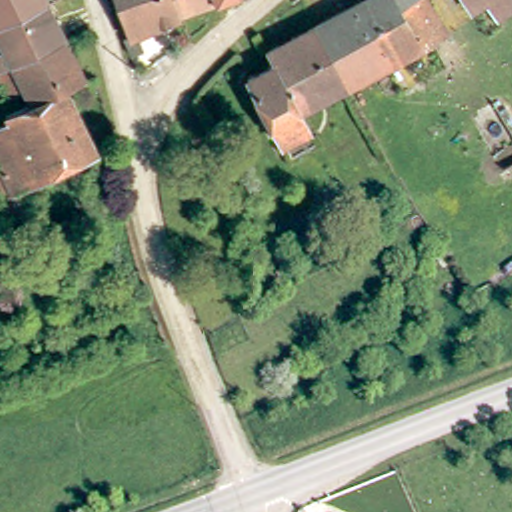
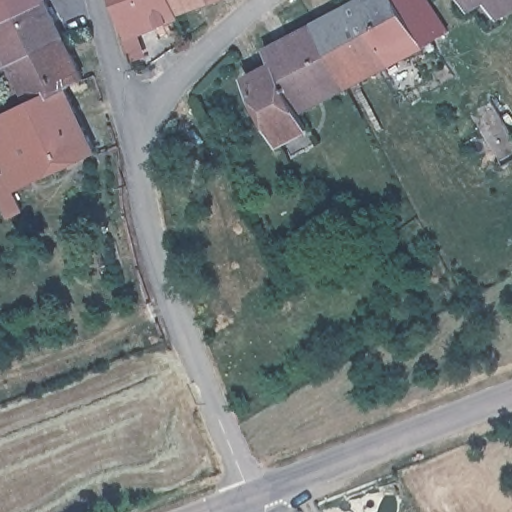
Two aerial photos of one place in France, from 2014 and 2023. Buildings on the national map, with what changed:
unchanged [(54,1),(0,28),(0,0),(53,0),(54,1)]
unchanged [(157,48),(143,55),(136,37),(140,35),(126,0),(180,0),(186,13),(150,31),(157,48)]
unchanged [(186,13),(180,0),(212,0),(186,13)]
unchanged [(217,1),(217,0),(220,0),(217,1)]
unchanged [(350,91),(316,32),(368,0),(395,0),(423,46),(350,91)]
unchanged [(447,31),(423,46),(395,0),(426,0),(447,31)]
unchanged [(488,0),(471,10),(464,0),(512,0),(512,9),(498,16),(488,0)]
unchanged [(0,63),(0,28),(54,1),(72,39),(5,72),(0,63)]
unchanged [(316,132),(284,150),(250,83),(278,66),(272,56),(316,32),(350,91),(308,117),(316,132)]
unchanged [(75,81),(38,98),(33,87),(16,96),(5,72),(72,39),(88,74),(75,81)]
unchanged [(5,199),(0,189),(0,184),(1,183),(0,180),(0,169),(5,166),(0,155),(0,127),(11,122),(7,113),(38,98),(75,81),(108,149),(20,191),(28,209),(13,216),(5,199)]

